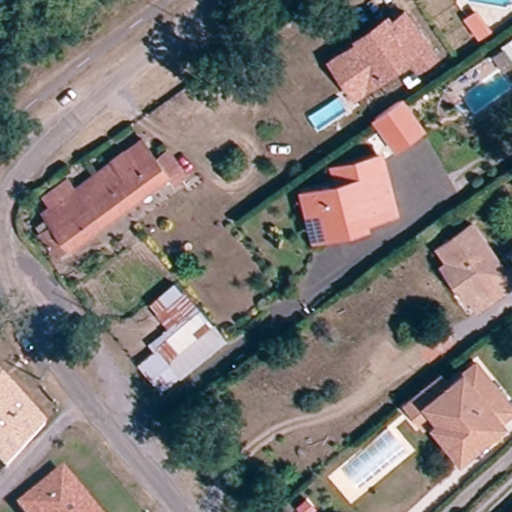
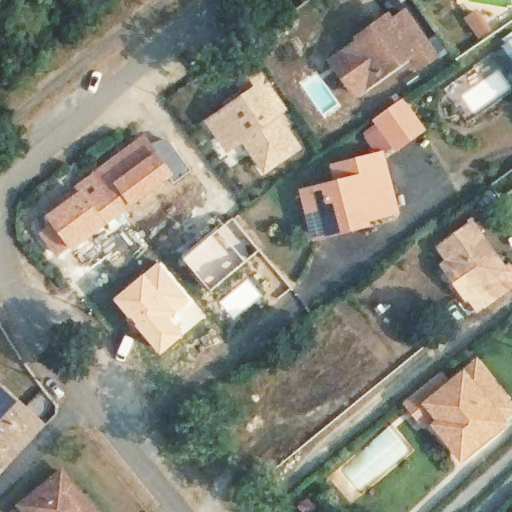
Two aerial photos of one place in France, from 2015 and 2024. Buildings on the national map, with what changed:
unchanged [(345,58),(360,47),(358,45),(389,23),(390,25),(392,28),(405,18),(427,48),(436,60),(422,70),(413,58),(369,90),(357,99),(333,67),(345,58)]
new [(290,111),(280,117),(301,150),(264,175),(244,145),(228,156),(205,122),(227,105),(225,101),(240,91),(236,83),(260,69),(290,111)]
demolished [(215,88),(209,93),(215,103),(177,130),(166,113),(182,102),(210,82),(215,88)]
unchanged [(424,132),(398,150),(376,119),(401,101),(424,132)]
unchanged [(142,136),(157,156),(169,147),(186,171),(175,180),(169,171),(120,208),(94,172),(142,136)]
unchanged [(332,228),(313,233),(301,189),(336,179),(332,164),(351,159),(376,152),(385,182),(391,205),(375,209),(340,219),(341,225),(332,228)]
unchanged [(120,208),(59,254),(42,231),(55,222),(45,209),(52,203),(45,193),(68,176),(76,186),(94,172),(120,208)]
new [(220,229),(232,219),(258,250),(245,260),(210,291),(184,259),(220,229)]
unchanged [(450,265),(453,263),(440,245),(472,221),(506,266),(510,263),(512,266),(512,283),(504,289),(480,307),(472,296),(450,265)]
new [(160,260),(205,315),(159,355),(112,298),(160,260)]
demolished [(221,336),(159,388),(147,374),(165,359),(177,349),(192,337),(210,322),(221,336)]
new [(230,341),(185,378),(171,361),(217,324),(230,341)]
unchanged [(436,415),(425,425),(406,402),(407,401),(441,374),(450,384),(477,362),(512,406),(512,412),(502,419),(505,423),(497,430),(467,454),(462,458),(436,426),(441,421),(436,415)]
unchanged [(45,421),(6,463),(0,457),(0,380),(45,421)]
unchanged [(19,503),(59,470),(76,491),(94,512),(26,512),(19,503)]
unchanged [(512,511),(512,512),(511,512),(512,511)]

